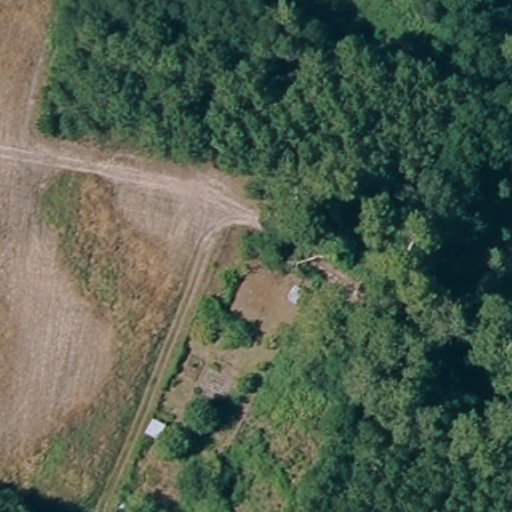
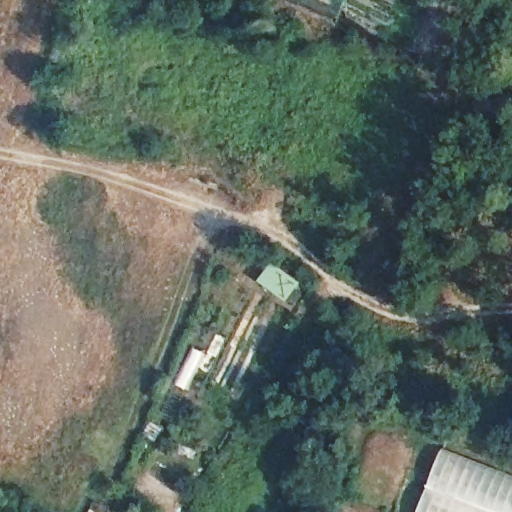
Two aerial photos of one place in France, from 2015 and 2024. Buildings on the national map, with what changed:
new [(512,474),(512,512),(416,512),(442,447),(512,474)]

